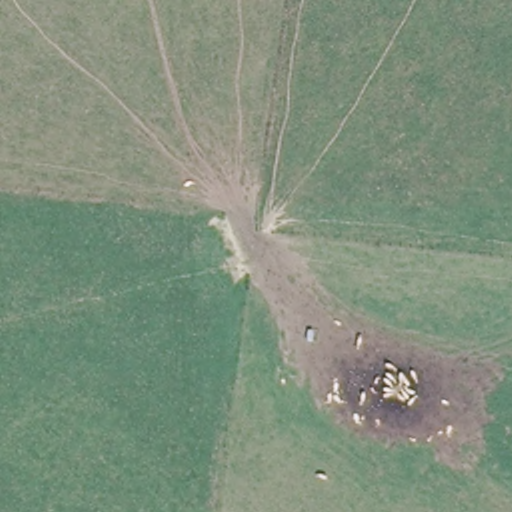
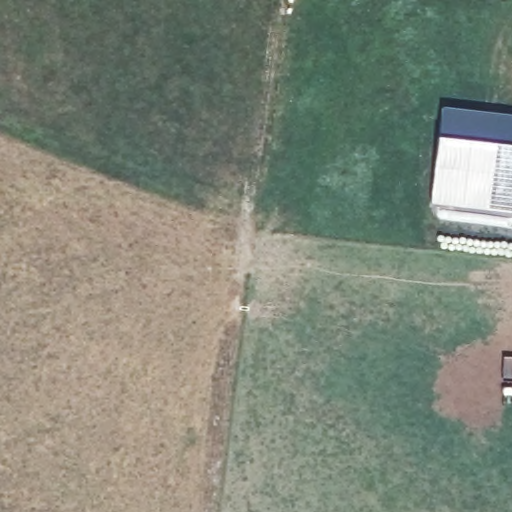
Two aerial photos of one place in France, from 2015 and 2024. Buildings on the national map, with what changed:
new [(439,106),(512,115),(512,146),(436,138),(439,106)]
new [(436,138),(512,146),(512,217),(483,216),(428,208),(436,138)]

